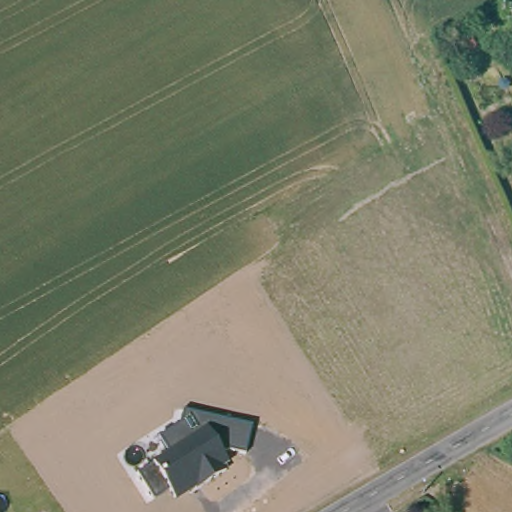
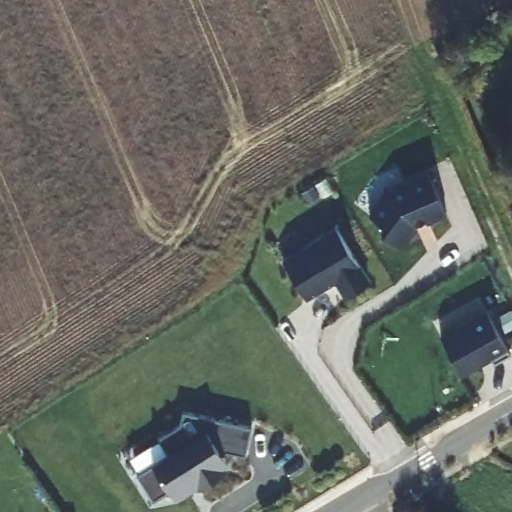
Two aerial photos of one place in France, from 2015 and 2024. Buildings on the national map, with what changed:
new [(401,247),(382,233),(381,223),(370,215),(387,191),(429,172),(447,212),(427,221),(426,219),(415,224),(416,226),(401,247)]
new [(337,227),(369,281),(345,296),(336,280),(306,298),(282,260),(337,227)]
new [(487,310),(511,353),(494,363),(490,355),(481,360),(482,362),(462,373),(441,336),(487,310)]
unchanged [(252,425),(247,456),(222,451),(231,464),(177,497),(156,460),(169,452),(160,437),(182,424),(183,411),(252,425)]

